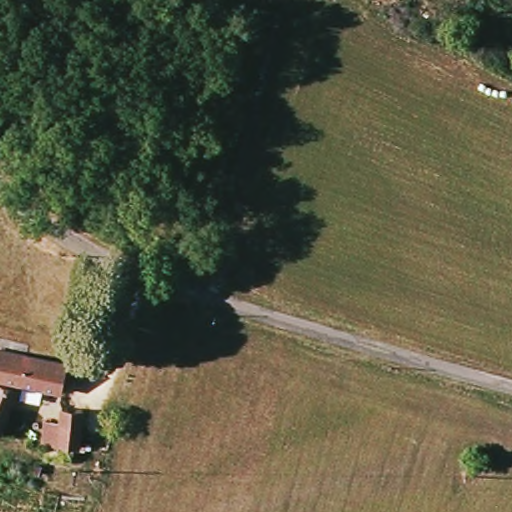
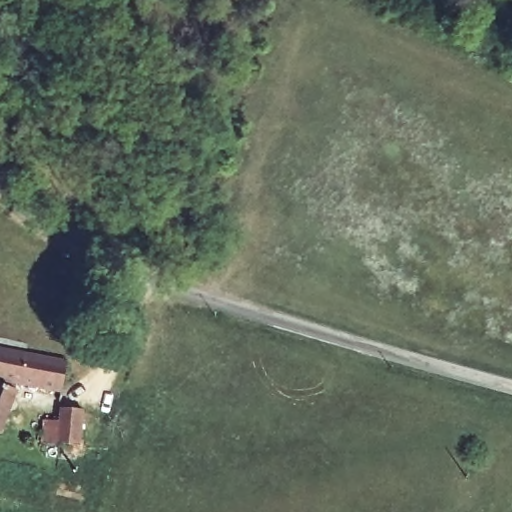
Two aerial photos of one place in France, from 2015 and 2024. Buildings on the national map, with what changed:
unchanged [(67,392),(24,382),(8,432),(0,430),(0,378),(0,376),(0,347),(74,358),(67,392)]
unchanged [(68,405),(88,406),(85,445),(65,444),(49,441),(53,416),(66,418),(68,405)]

